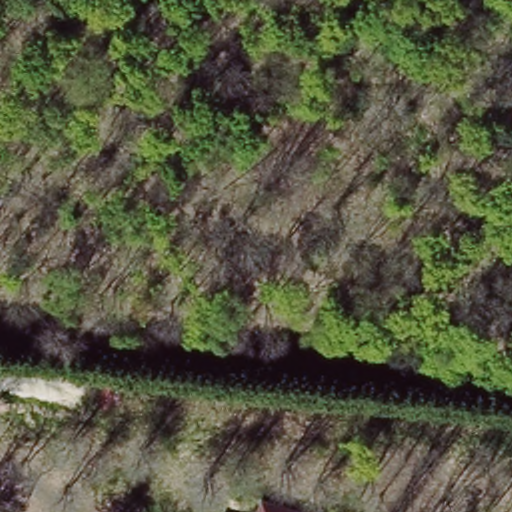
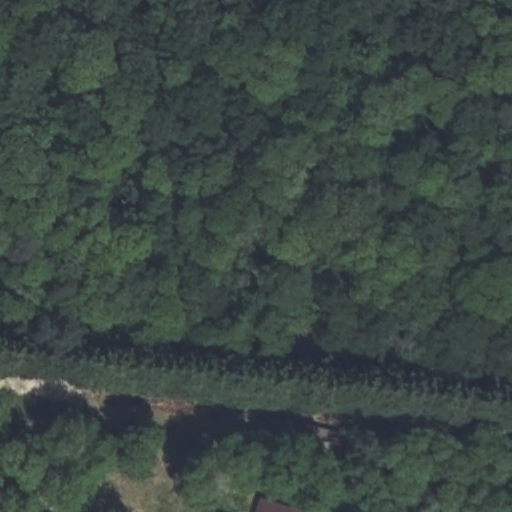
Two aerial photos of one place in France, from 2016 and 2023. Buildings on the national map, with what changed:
unchanged [(258,512),(261,501),(301,512),(258,512)]

